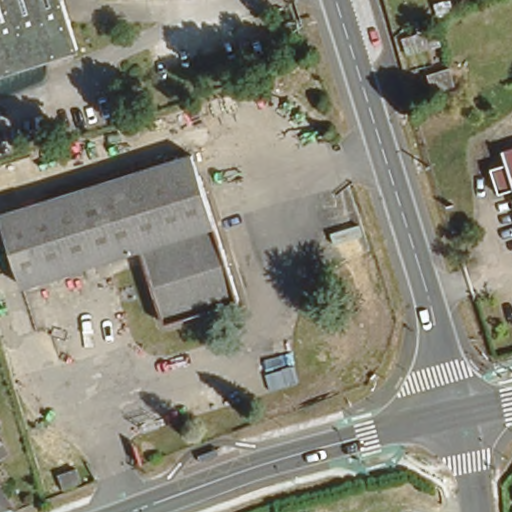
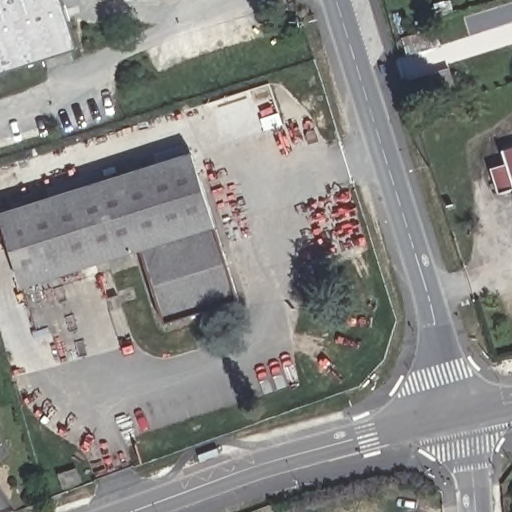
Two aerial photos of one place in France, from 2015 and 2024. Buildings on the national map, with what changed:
unchanged [(0,75),(0,0),(62,0),(79,50),(0,75)]
unchanged [(417,56),(411,36),(438,31),(444,50),(417,56)]
unchanged [(455,86),(433,92),(428,74),(449,67),(455,86)]
unchanged [(499,199),(491,174),(507,169),(503,156),(512,154),(512,195),(499,199)]
unchanged [(239,306),(164,330),(140,257),(22,293),(0,220),(193,159),(239,306)]
unchanged [(0,431),(0,423),(2,430),(0,431)]
unchanged [(80,487),(64,493),(59,480),(76,473),(80,487)]

